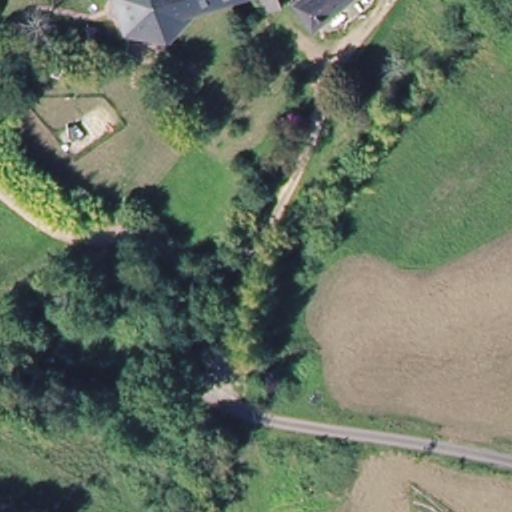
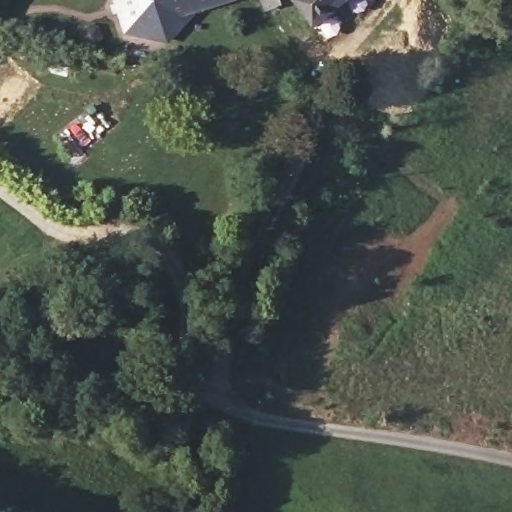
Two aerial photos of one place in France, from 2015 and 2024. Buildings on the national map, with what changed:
unchanged [(199,11),(175,41),(134,30),(125,0),(196,0),(199,9),(199,11)]
unchanged [(196,0),(229,0),(199,9),(196,0)]
unchanged [(266,10),(263,0),(282,0),(283,4),(266,10)]
unchanged [(289,10),(300,0),(349,0),(311,32),(289,10)]

